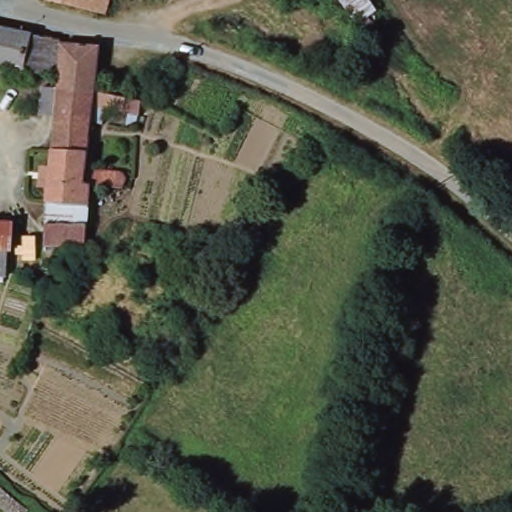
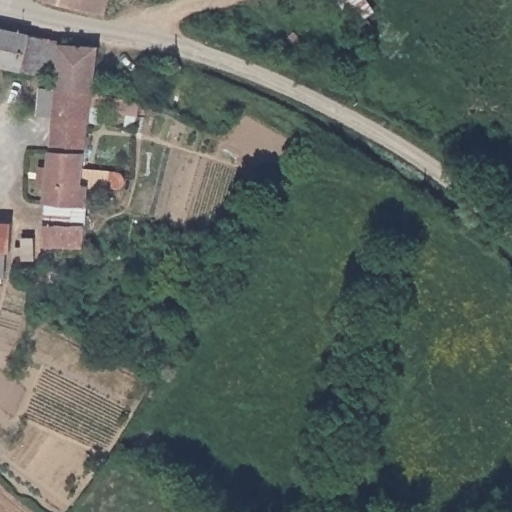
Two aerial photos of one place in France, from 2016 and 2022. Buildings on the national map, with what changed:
unchanged [(48,0),(104,0),(100,15),(48,0)]
unchanged [(367,19),(376,32),(364,40),(354,26),(336,0),(366,0),(374,12),(367,19)]
unchanged [(55,80),(28,74),(0,68),(0,32),(59,45),(58,47),(55,80)]
unchanged [(97,51),(92,95),(73,92),(54,90),(55,80),(58,47),(97,51)]
unchanged [(167,93),(151,86),(163,62),(179,70),(167,93)]
unchanged [(82,251),(41,247),(44,224),(48,189),(37,187),(39,167),(49,168),(53,115),(37,114),(39,89),(54,90),(73,92),(92,95),(109,99),(111,99),(135,104),(134,119),(90,110),(88,127),(83,165),(82,175),(92,172),(120,176),(123,178),(124,185),(121,189),(118,192),(115,191),(88,187),(88,209),(87,228),(86,238),(82,251)]
unchanged [(12,225),(9,252),(3,252),(1,278),(0,278),(0,224),(12,225)]

